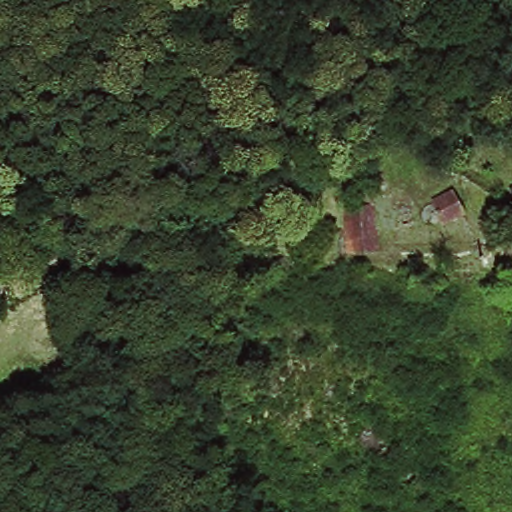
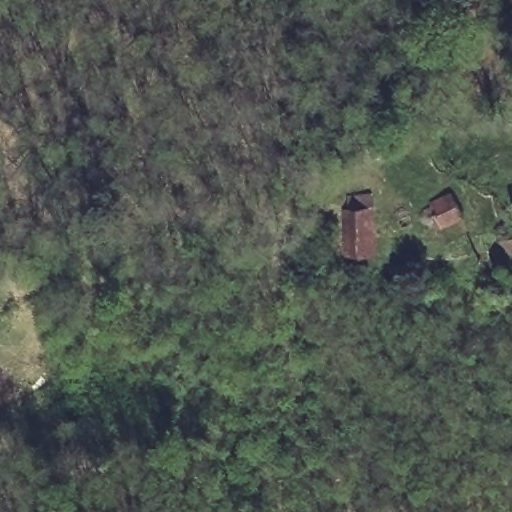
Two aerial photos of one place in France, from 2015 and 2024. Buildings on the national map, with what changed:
unchanged [(443,192),(427,196),(424,186),(434,184),(430,174),(456,164),(463,185),(443,192)]
unchanged [(349,195),(379,195),(379,245),(348,245),(349,195)]
unchanged [(411,197),(414,204),(402,210),(399,204),(411,197)]
unchanged [(510,224),(512,215),(512,224),(510,224)]

